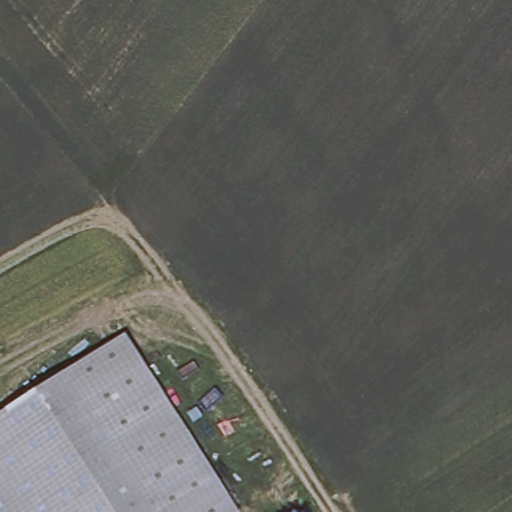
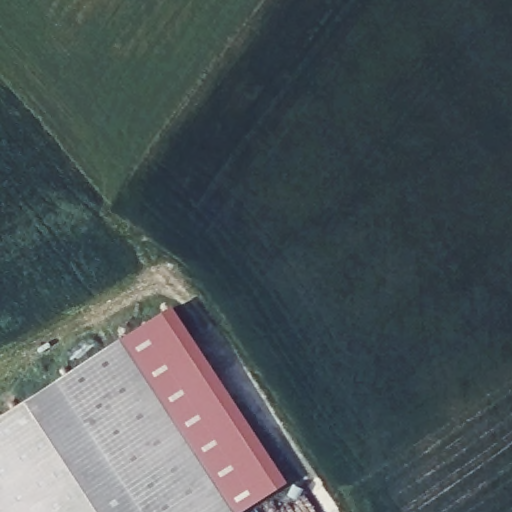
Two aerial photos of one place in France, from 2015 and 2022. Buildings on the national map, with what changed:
new [(241,512),(238,512),(125,336),(175,302),(290,480),(241,512)]
unchanged [(238,512),(148,512),(60,379),(124,333),(238,512)]
unchanged [(60,379),(148,512),(0,512),(0,416),(60,379)]

